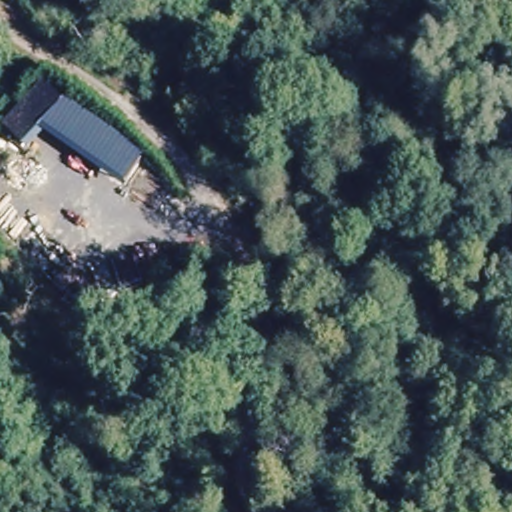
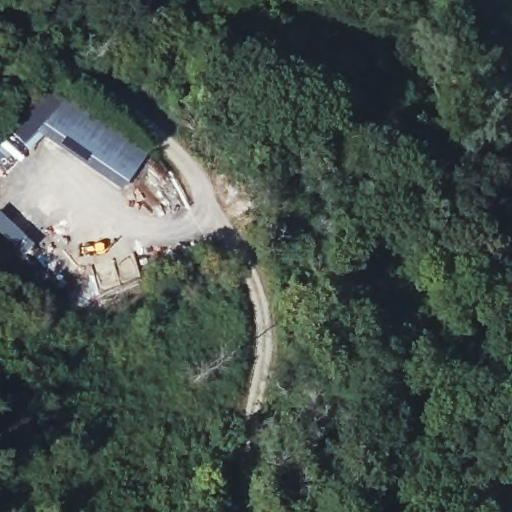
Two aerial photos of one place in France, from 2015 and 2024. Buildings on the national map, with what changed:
unchanged [(126,189),(45,133),(29,149),(0,125),(0,124),(40,86),(149,156),(126,189)]

